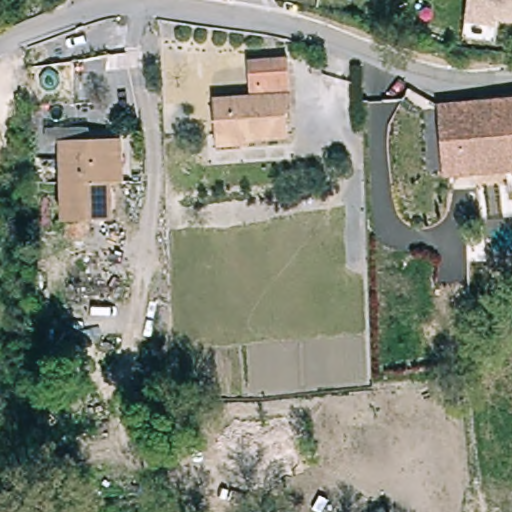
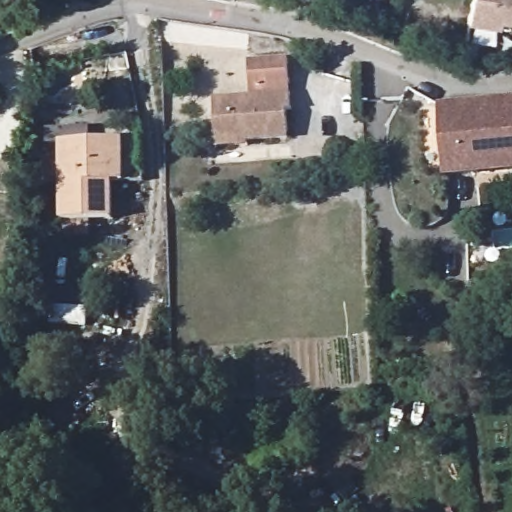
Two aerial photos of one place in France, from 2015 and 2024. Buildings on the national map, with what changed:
unchanged [(492,17),(490,25),(460,20),(463,0),(512,0),(512,22),(492,17)]
unchanged [(222,150),(221,139),(218,102),(254,97),(250,62),(290,58),(295,111),(290,112),(292,139),(253,142),(253,147),(222,150)]
unchanged [(448,180),(441,111),(512,103),(512,174),(448,180)]
unchanged [(115,220),(87,221),(88,237),(64,239),(61,184),(59,142),(123,139),(124,161),(125,182),(114,182),(116,220),(115,220)]

